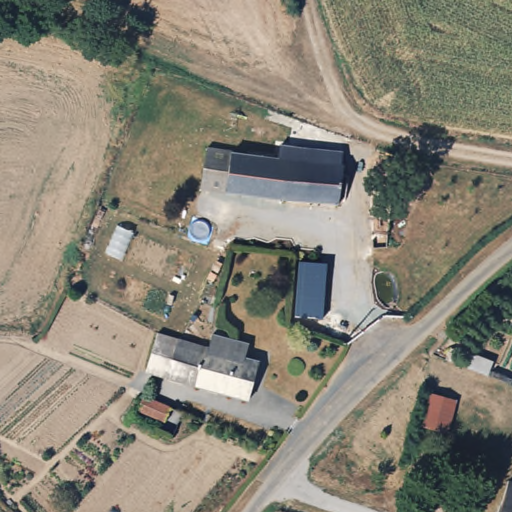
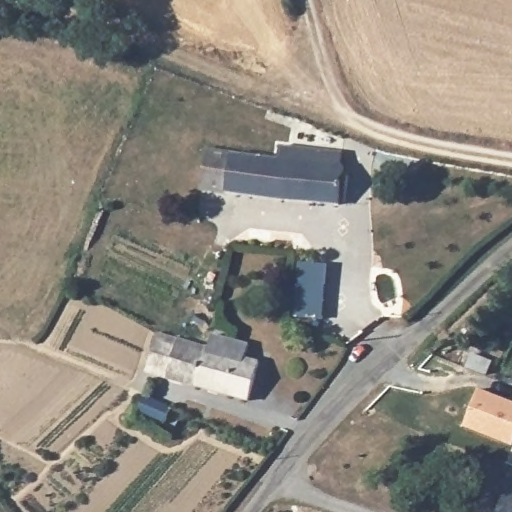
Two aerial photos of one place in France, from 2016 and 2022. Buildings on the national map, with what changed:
unchanged [(334,173),(340,179),(339,190),(332,196),(331,201),(200,186),(204,153),(275,161),(276,150),(336,157),(334,173)]
demolished [(388,201),(387,240),(374,236),(375,201),(388,201)]
unchanged [(320,263),(318,302),(296,301),(298,261),(320,263)]
unchanged [(204,350),(195,388),(139,373),(149,335),(204,350)]
unchanged [(246,343),(241,362),(258,366),(248,402),(195,388),(204,350),(211,352),(216,335),(246,343)]
new [(478,387),(512,401),(512,442),(510,445),(463,427),(478,387)]
unchanged [(159,413),(149,426),(123,405),(130,394),(159,413)]
unchanged [(512,485),(512,512),(496,512),(502,489),(504,483),(512,485)]

